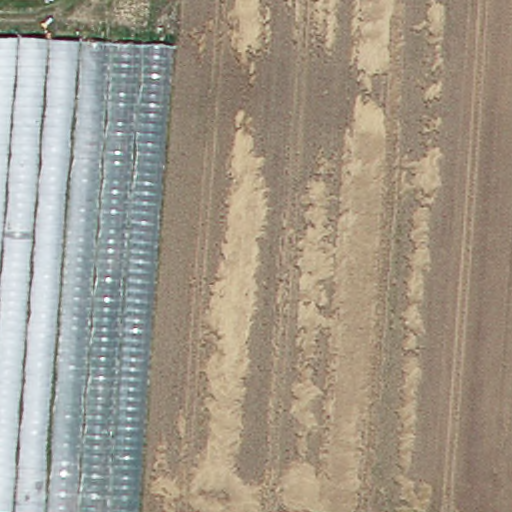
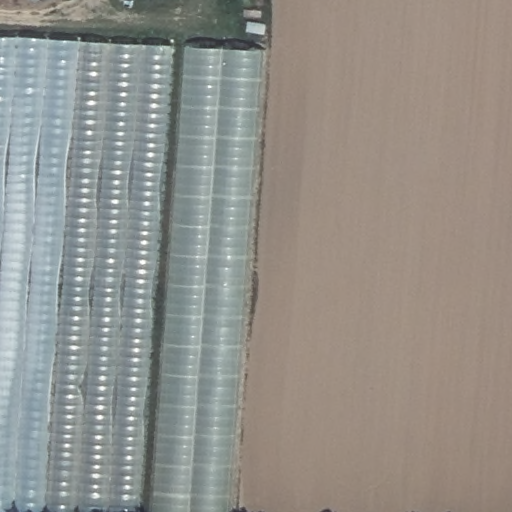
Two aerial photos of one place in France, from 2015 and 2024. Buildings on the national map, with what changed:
unchanged [(136,45),(103,512),(0,512),(0,36),(136,45)]
new [(171,48),(138,512),(112,512),(145,46),(171,48)]
new [(261,53),(228,512),(156,512),(188,46),(261,53)]

